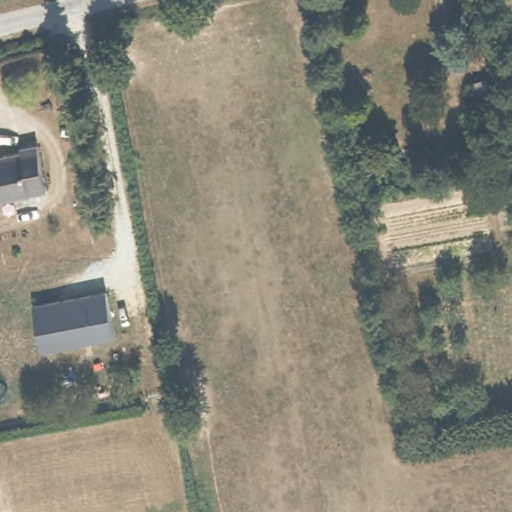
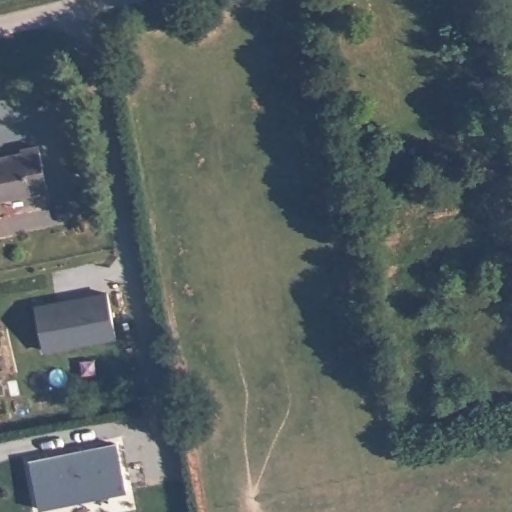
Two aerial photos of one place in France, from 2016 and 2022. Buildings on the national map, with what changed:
unchanged [(36,140),(46,185),(0,194),(0,148),(36,140)]
unchanged [(35,305),(107,292),(116,338),(44,351),(35,305)]
demolished [(9,375),(15,410),(0,412),(0,378),(9,375)]
new [(36,510),(27,458),(116,442),(126,491),(36,510)]

